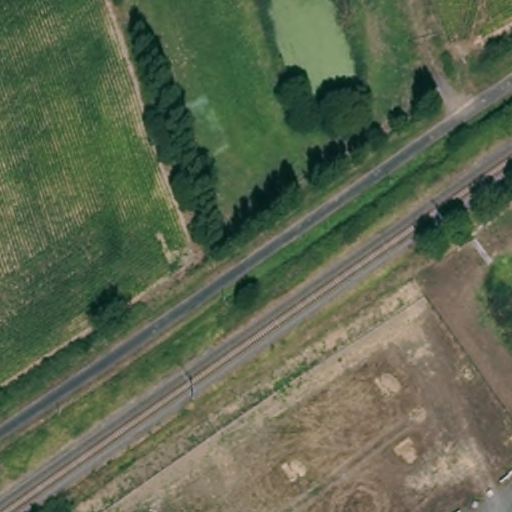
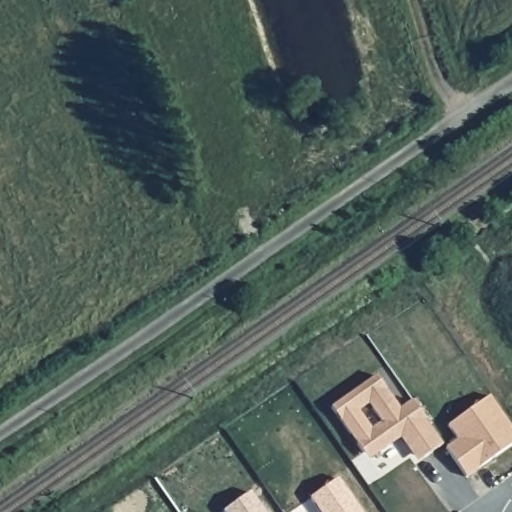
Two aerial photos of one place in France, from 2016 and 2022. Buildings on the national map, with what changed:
new [(331,406),(376,375),(400,408),(413,400),(443,444),(417,462),(400,437),(370,460),(331,406)]
new [(456,439),(448,425),(490,396),(512,429),(512,444),(466,476),(446,447),(456,439)]
new [(337,478),(362,512),(320,512),(310,497),(337,478)]

